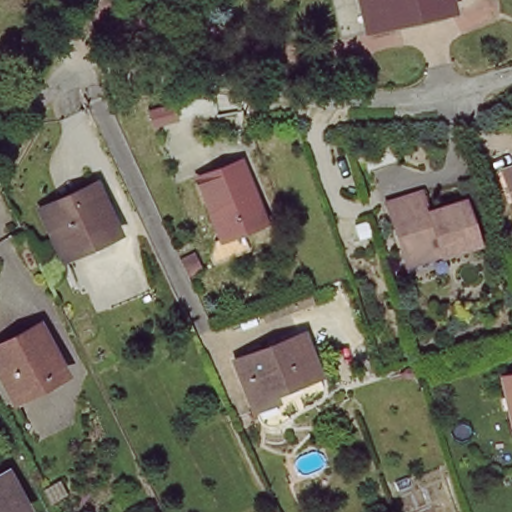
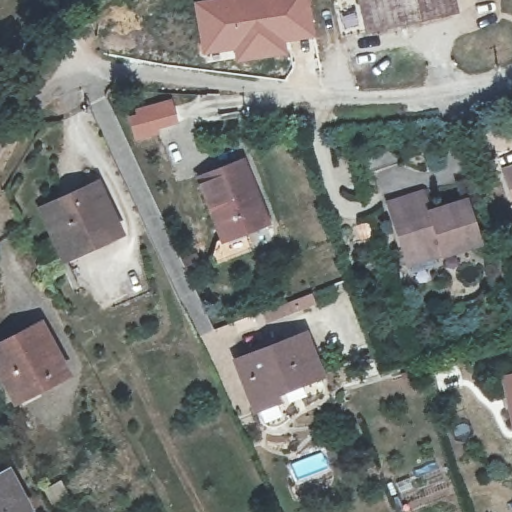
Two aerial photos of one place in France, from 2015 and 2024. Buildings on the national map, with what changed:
new [(198,0),(310,0),(316,38),(287,43),(289,55),(235,63),(233,51),(200,56),(192,1),(198,0)]
unchanged [(331,0),(448,0),(452,16),(424,22),(421,10),(337,28),(331,0)]
unchanged [(350,37),(339,40),(337,28),(421,10),(424,22),(350,37)]
new [(173,98),(179,124),(158,130),(160,136),(134,143),(125,112),(173,98)]
unchanged [(244,250),(217,261),(211,251),(216,237),(218,238),(197,179),(214,172),(245,159),(271,217),(247,226),(253,246),(244,250)]
unchanged [(500,165),(512,162),(512,203),(500,165)]
unchanged [(44,210),(73,197),(96,186),(118,232),(96,242),(64,255),(44,210)]
unchanged [(427,246),(405,253),(395,224),(387,202),(421,191),(430,212),(462,200),(477,242),(432,258),(427,246)]
unchanged [(303,283),(308,296),(274,309),(267,296),(303,283)]
unchanged [(0,365),(0,346),(35,325),(61,366),(17,391),(0,365)]
unchanged [(318,372),(274,389),(278,397),(254,407),(232,358),(300,333),(318,372)]
unchanged [(503,377),(512,375),(512,413),(503,377)]
unchanged [(0,512),(0,473),(22,503),(11,512),(0,512)]

